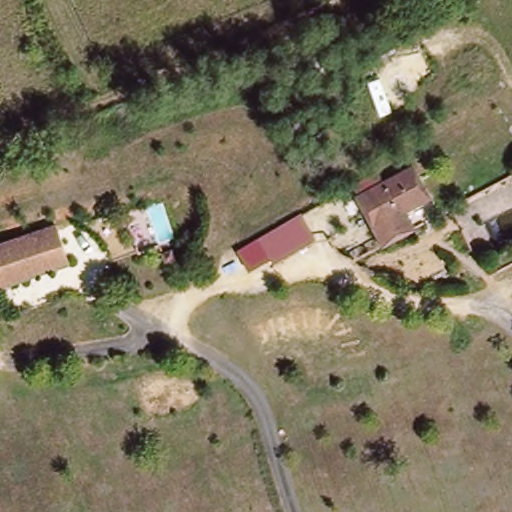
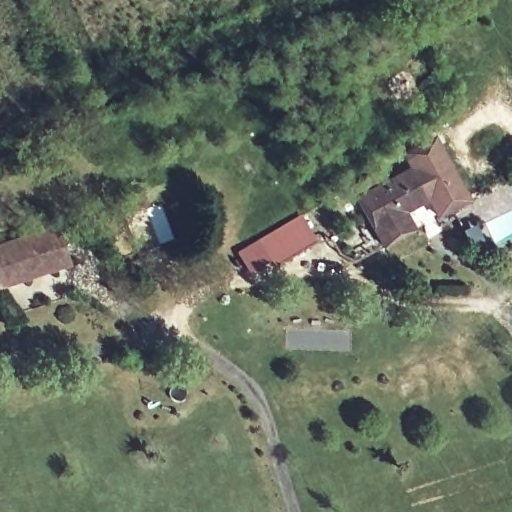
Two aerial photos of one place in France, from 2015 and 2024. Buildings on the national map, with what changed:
new [(472,200),(437,217),(427,200),(409,167),(402,152),(435,134),(472,200)]
unchanged [(354,197),(409,167),(427,200),(406,212),(415,231),(378,248),(354,197)]
unchanged [(150,225),(148,230),(142,236),(136,235),(129,228),(129,221),(132,216),(135,214),(142,212),(149,219),(150,225)]
unchanged [(317,243),(275,267),(271,262),(248,275),(237,253),(302,216),(317,243)]
unchanged [(62,247),(69,266),(54,271),(0,289),(0,248),(57,229),(62,247)]
unchanged [(155,262),(146,266),(142,257),(152,254),(155,262)]

